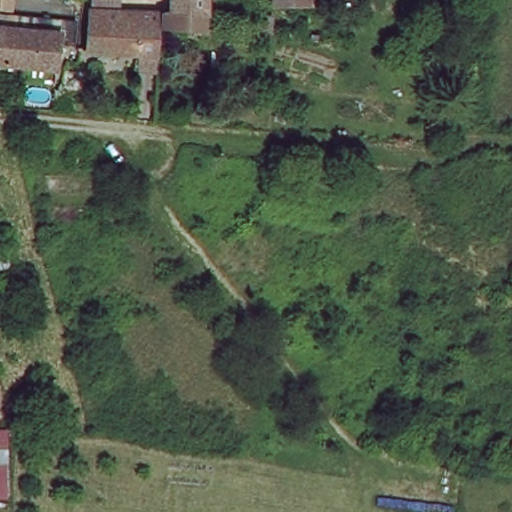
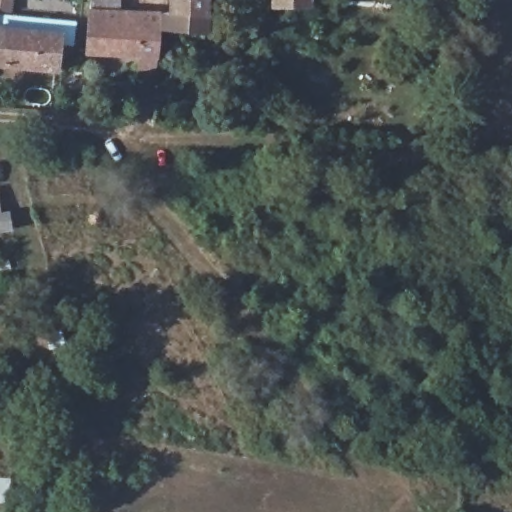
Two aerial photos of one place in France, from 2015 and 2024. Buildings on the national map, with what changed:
unchanged [(134,77),(135,57),(83,53),(88,11),(91,11),(92,0),(118,0),(118,13),(155,14),(152,59),(151,77),(134,77)]
unchanged [(159,31),(159,15),(164,15),(165,0),(207,0),(206,16),(206,33),(159,31)]
unchanged [(316,10),(268,9),(269,0),(316,0),(316,10)]
unchanged [(72,34),(70,56),(55,53),(52,78),(0,74),(0,24),(72,34)]
new [(0,213),(9,211),(12,232),(0,234),(0,213)]

